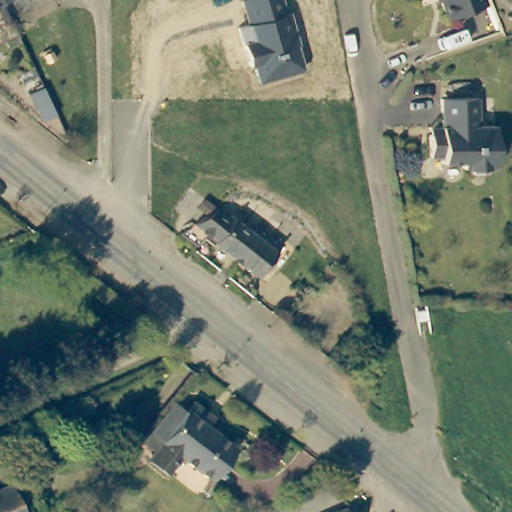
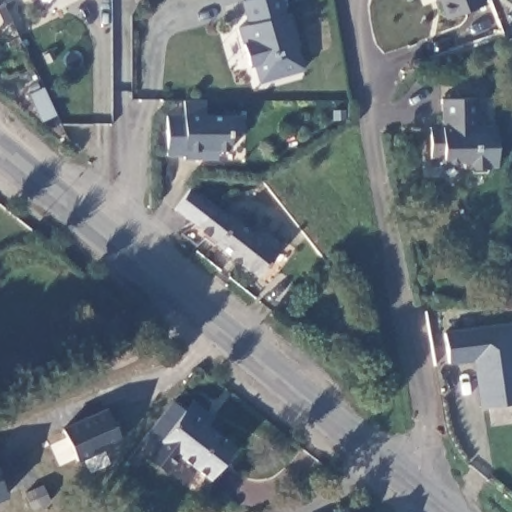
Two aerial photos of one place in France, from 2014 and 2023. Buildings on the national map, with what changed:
unchanged [(0,3),(0,0),(22,0),(4,10),(0,3)]
unchanged [(244,46),(239,25),(248,23),(240,1),(246,0),(280,0),(284,12),(288,11),(304,70),(260,82),(250,66),(244,46)]
unchanged [(432,0),(477,0),(478,3),(439,18),(432,0)]
unchanged [(0,3),(4,10),(0,12),(0,3)]
unchanged [(42,122),(29,96),(43,89),(55,116),(42,122)]
unchanged [(478,91),(478,118),(494,117),(494,159),(488,160),(484,166),(472,166),(468,161),(459,161),(459,157),(439,158),(439,151),(428,152),(427,129),(427,121),(439,121),(439,93),(478,91)]
new [(207,159),(186,160),(186,157),(169,157),(168,117),(185,117),(185,102),(206,102),(207,116),(244,116),(244,131),(237,131),(232,136),(232,151),(219,151),(219,159),(207,159)]
unchanged [(195,224),(219,208),(254,235),(259,228),(283,246),(259,278),(216,245),(218,242),(209,235),(198,247),(182,234),(195,224)]
new [(512,327),(512,406),(484,410),(478,362),(452,365),(448,335),(512,327)]
unchanged [(356,374),(346,364),(361,348),(371,358),(356,374)]
unchanged [(188,407),(199,416),(207,407),(222,418),(215,426),(249,453),(236,471),(224,484),(194,460),(180,478),(163,464),(169,456),(156,447),(165,435),(188,407)]
demolished [(21,512),(0,512),(0,486),(8,482),(21,512)]
unchanged [(345,508),(347,512),(337,512),(345,508)]

